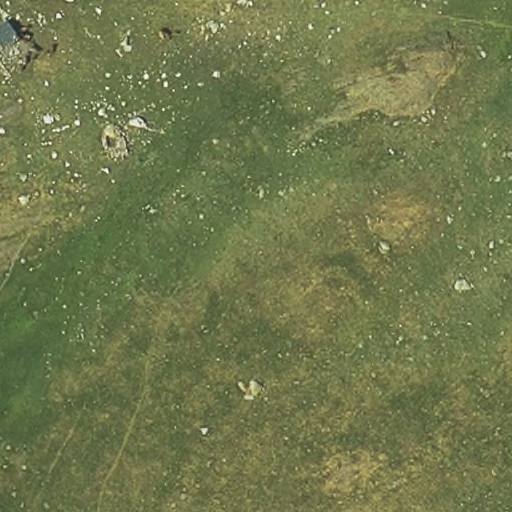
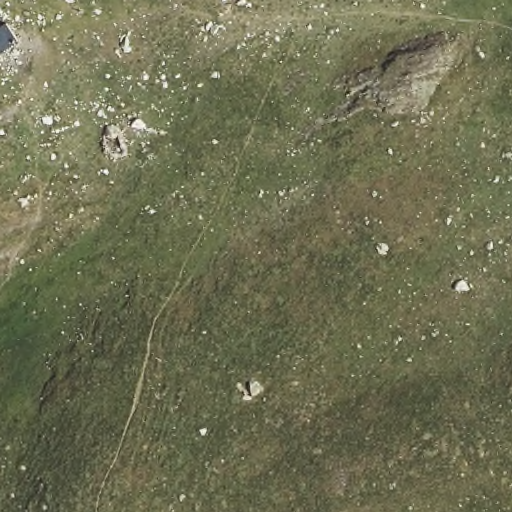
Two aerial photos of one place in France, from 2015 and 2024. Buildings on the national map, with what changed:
unchanged [(0,49),(0,22),(10,17),(23,37),(1,50),(0,49)]

